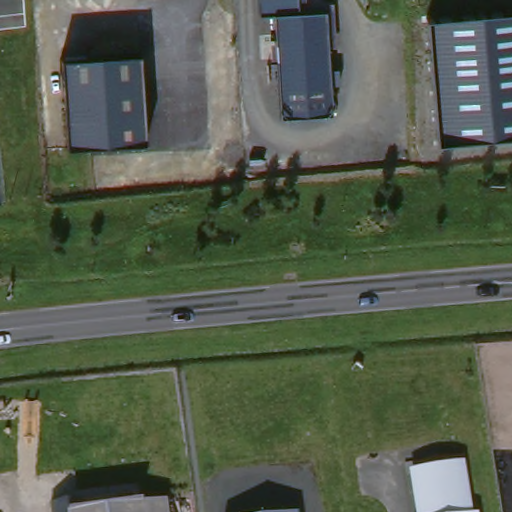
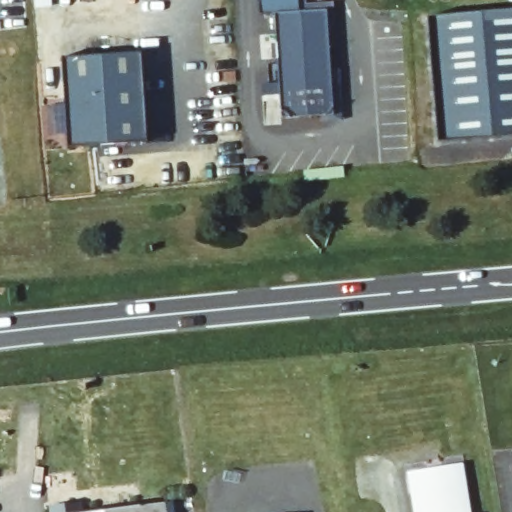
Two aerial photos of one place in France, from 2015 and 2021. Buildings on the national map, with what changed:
unchanged [(258,13),(257,0),(307,0),(308,3),(281,3),(281,13),(271,13),(258,13)]
unchanged [(271,13),(281,13),(281,3),(328,2),(330,42),(325,41),(330,113),(278,116),(271,13)]
unchanged [(512,10),(512,136),(438,141),(427,17),(512,10)]
unchanged [(63,57),(140,53),(146,145),(68,148),(63,57)]
unchanged [(464,466),(472,512),(421,512),(414,474),(464,466)]
unchanged [(80,512),(49,512),(48,506),(78,502),(80,512)]
unchanged [(164,512),(100,512),(163,504),(164,512)]

